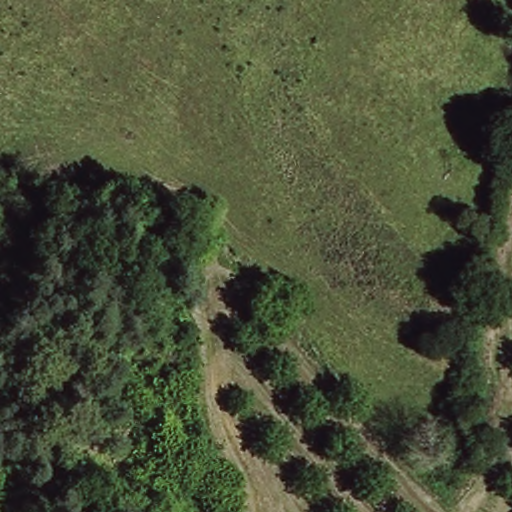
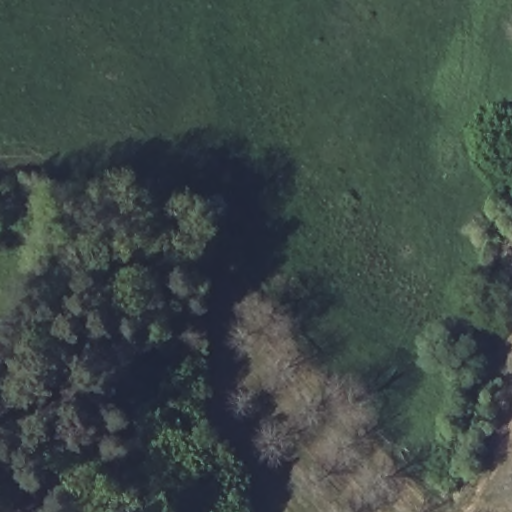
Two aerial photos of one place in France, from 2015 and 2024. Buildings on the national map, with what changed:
unchanged [(0,215),(0,184),(8,178),(26,205),(3,220),(0,215)]

